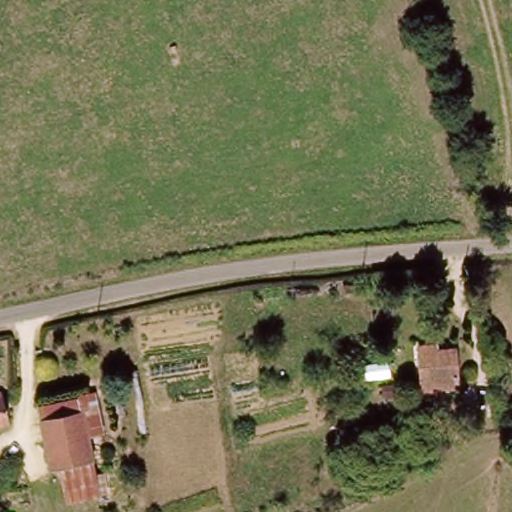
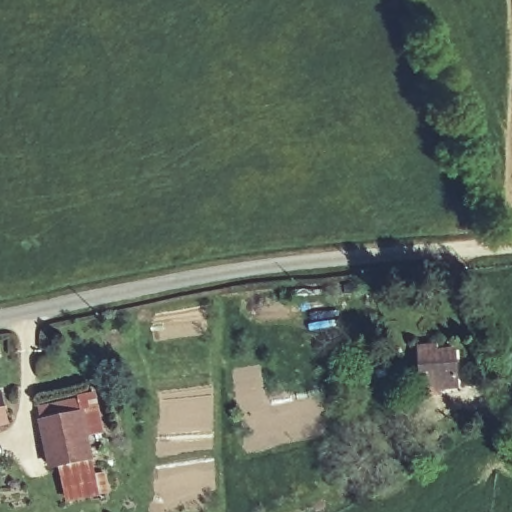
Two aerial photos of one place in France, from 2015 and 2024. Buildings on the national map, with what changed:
unchanged [(418,378),(416,342),(434,341),(434,346),(454,345),(456,381),(457,387),(419,390),(418,378)]
unchanged [(32,405),(74,395),(91,391),(102,431),(85,436),(90,457),(48,466),(32,405)]
unchanged [(0,427),(0,417),(2,426),(0,427)]
unchanged [(48,466),(90,457),(100,492),(58,502),(48,466)]

